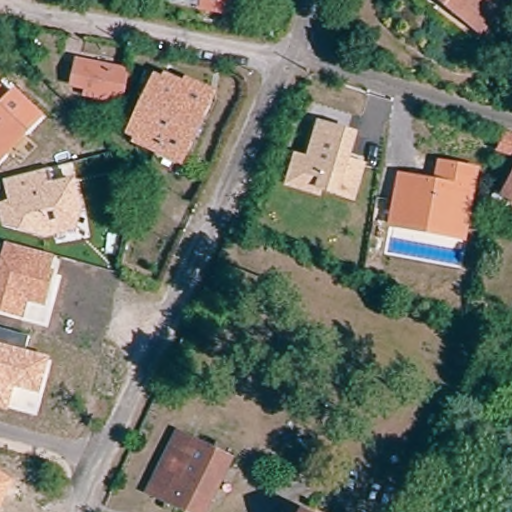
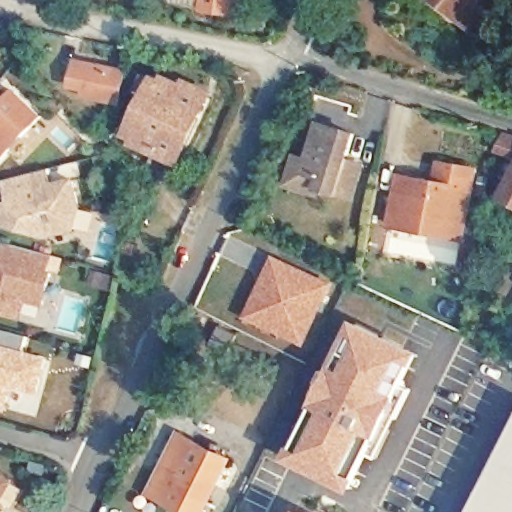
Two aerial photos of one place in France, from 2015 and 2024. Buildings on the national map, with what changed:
unchanged [(198,10),(198,0),(235,0),(232,15),(198,10)]
unchanged [(434,0),(497,0),(486,14),(474,30),(465,22),(434,0)]
unchanged [(119,104),(85,97),(87,89),(73,86),(78,62),(126,71),(119,104)]
unchanged [(158,72),(160,68),(181,77),(184,72),(215,87),(179,165),(149,152),(151,147),(133,139),(135,134),(125,130),(150,70),(158,72)]
unchanged [(9,92),(15,87),(44,115),(0,163),(0,83),(9,92)]
unchanged [(296,153),(307,156),(318,121),(359,132),(352,157),(365,160),(356,199),(343,195),(342,200),(323,192),(322,199),(286,188),(296,153)]
unchanged [(500,146),(499,145),(506,132),(512,134),(512,160),(497,155),(500,146)]
unchanged [(390,227),(399,174),(432,179),(436,160),(479,166),(467,242),(390,227)]
unchanged [(51,181),(76,176),(84,207),(77,229),(48,238),(2,225),(0,220),(0,203),(9,200),(3,179),(48,168),(51,181)]
unchanged [(512,171),(512,198),(501,192),(512,171)]
unchanged [(55,255),(52,268),(56,270),(45,306),(28,302),(24,318),(0,312),(0,261),(5,241),(55,255)]
new [(273,255),(335,282),(306,347),(241,319),(273,255)]
new [(424,353),(355,491),(287,460),(357,320),(424,353)]
unchanged [(29,335),(26,350),(50,356),(40,392),(14,386),(8,410),(0,408),(0,328),(29,335)]
unchanged [(230,458),(204,512),(184,512),(147,494),(176,433),(230,458)]
new [(512,435),(512,512),(474,512),(512,435)]
unchanged [(16,480),(0,505),(0,471),(16,480)]
unchanged [(296,508),(303,512),(294,512),(296,508)]

